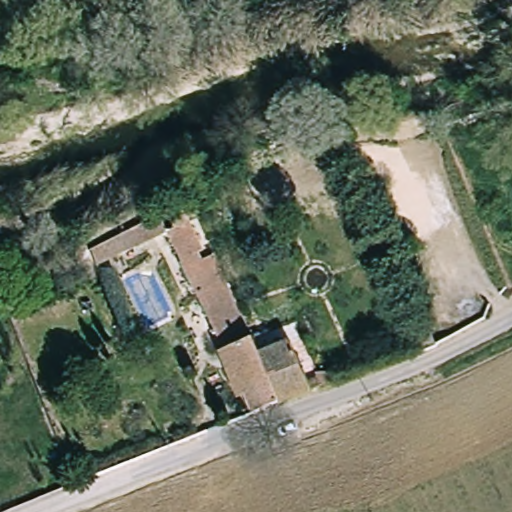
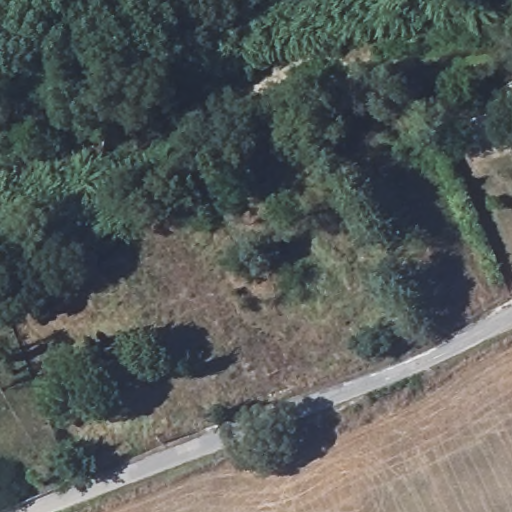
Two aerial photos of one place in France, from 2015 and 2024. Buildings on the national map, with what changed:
demolished [(193,251),(204,247),(242,328),(245,327),(252,342),(284,330),(305,381),(245,403),(237,386),(215,339),(169,239),(161,222),(176,216),(193,251)]
unchanged [(435,344),(424,352),(418,337),(431,332),(435,344)]

